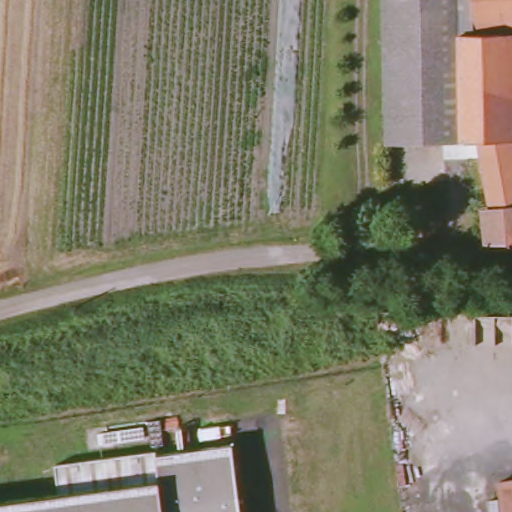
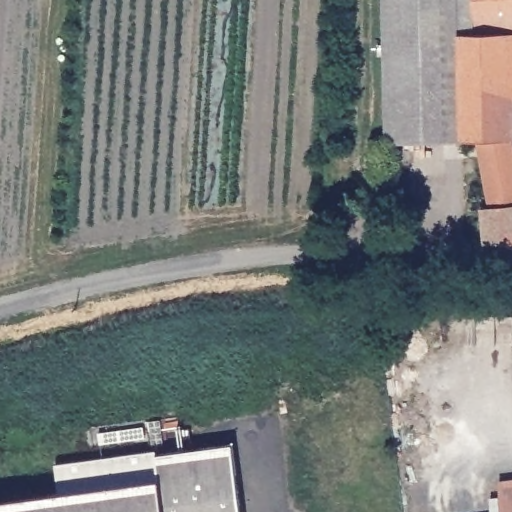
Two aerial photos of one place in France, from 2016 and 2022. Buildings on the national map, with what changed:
unchanged [(380,0),(457,0),(461,140),(384,141),(380,0)]
unchanged [(510,130),(512,140),(512,238),(487,242),(483,242),(480,204),(489,202),(481,140),(461,140),(457,0),(512,0),(512,38),(508,38),(510,130)]
unchanged [(58,496),(54,465),(154,452),(155,458),(231,448),(240,512),(0,512),(0,503),(58,496)]
unchanged [(512,512),(501,512),(497,483),(512,480),(512,512)]

